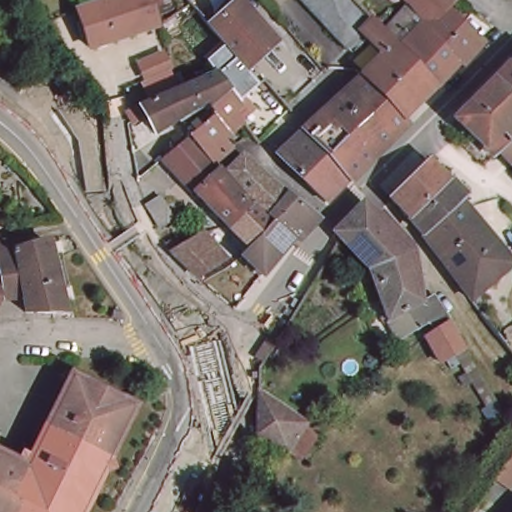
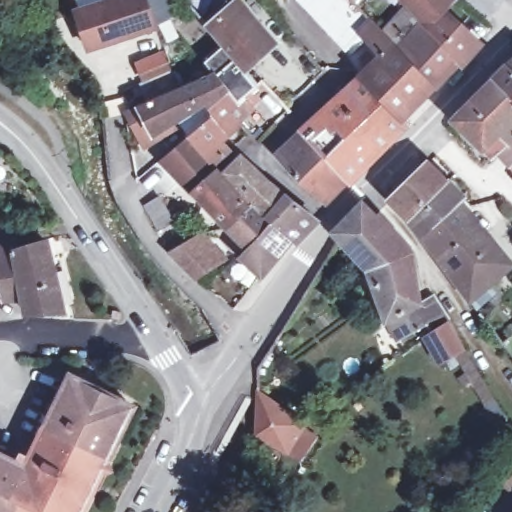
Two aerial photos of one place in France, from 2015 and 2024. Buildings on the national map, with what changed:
unchanged [(72,15),(117,0),(158,0),(162,14),(146,19),(150,28),(82,49),(72,15)]
unchanged [(377,48),(356,31),(340,43),(297,0),(354,0),(355,1),(367,13),(380,27),(430,79),(399,112),(356,68),(377,48)]
unchanged [(464,48),(455,57),(453,56),(406,1),(405,0),(445,0),(439,6),(473,38),(464,48)]
unchanged [(235,1),(275,44),(246,70),(208,24),(235,1)]
unchanged [(406,1),(453,56),(430,79),(380,27),(406,1)]
unchanged [(261,116),(245,127),(247,129),(240,134),(220,114),(217,116),(213,111),(205,101),(157,133),(149,117),(132,126),(123,112),(151,98),(142,80),(135,65),(160,54),(167,69),(168,69),(174,87),(207,71),(235,103),(242,96),(261,116)]
unchanged [(512,65),(506,59),(512,54),(512,65)]
unchanged [(497,145),(489,150),(450,112),(471,92),(480,83),(490,74),(506,59),(512,65),(512,161),(510,159),(497,145)]
unchanged [(399,112),(403,116),(345,174),(342,171),(298,122),(356,68),(399,112)]
unchanged [(243,251),(248,244),(228,223),(213,208),(177,170),(162,154),(188,133),(213,111),(217,116),(233,136),(228,141),(233,147),(213,163),(223,175),(243,157),(272,183),(287,195),(315,216),(292,240),(260,271),(245,255),(243,251)]
unchanged [(342,171),(320,194),(272,145),(298,122),(342,171)]
unchanged [(393,192),(427,158),(444,176),(409,209),(393,192)]
unchanged [(409,209),(444,176),(462,194),(457,199),(425,227),(409,209)]
unchanged [(168,217),(154,225),(143,207),(140,200),(152,191),(156,196),(168,217)]
unchanged [(457,199),(510,256),(468,295),(433,236),(427,229),(425,227),(457,199)]
unchanged [(405,346),(401,349),(397,341),(403,336),(407,340),(417,336),(410,324),(405,325),(397,311),(387,317),(362,263),(337,229),(365,200),(390,228),(395,224),(412,250),(416,296),(429,290),(442,319),(459,345),(433,361),(421,341),(408,350),(405,346)]
unchanged [(225,255),(195,268),(170,243),(167,238),(177,233),(180,239),(202,229),(225,255)]
unchanged [(0,240),(17,237),(17,244),(48,236),(60,309),(22,308),(21,299),(20,288),(0,289),(0,267),(3,267),(0,240)]
unchanged [(265,390),(257,386),(270,364),(277,367),(265,390)]
unchanged [(16,466),(21,459),(28,463),(72,382),(123,409),(100,451),(103,471),(98,472),(77,512),(0,512),(0,457),(16,466)]
unchanged [(264,413),(264,398),(287,414),(312,434),(295,462),(270,448),(260,443),(264,413)]
unchanged [(492,477),(512,445),(512,481),(507,488),(492,477)]

